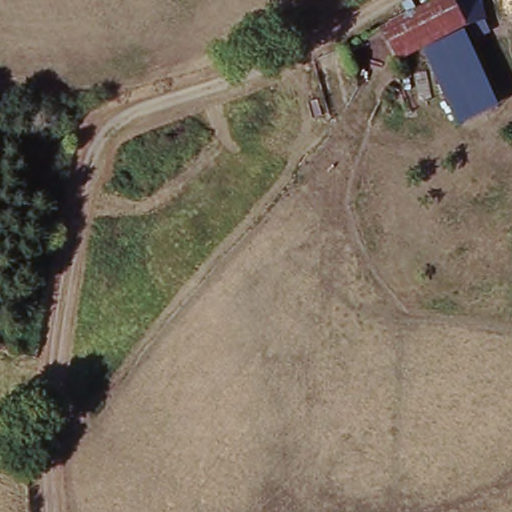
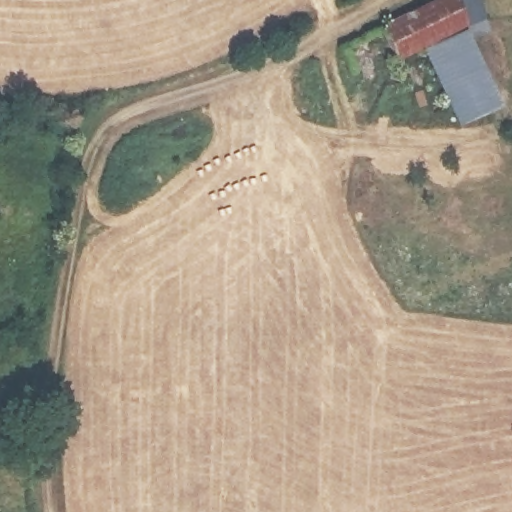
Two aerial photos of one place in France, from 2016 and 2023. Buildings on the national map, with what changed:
unchanged [(449,0),(488,0),(496,20),(389,70),(375,38),(449,0)]
unchanged [(502,109),(461,128),(426,52),(469,32),(502,109)]

